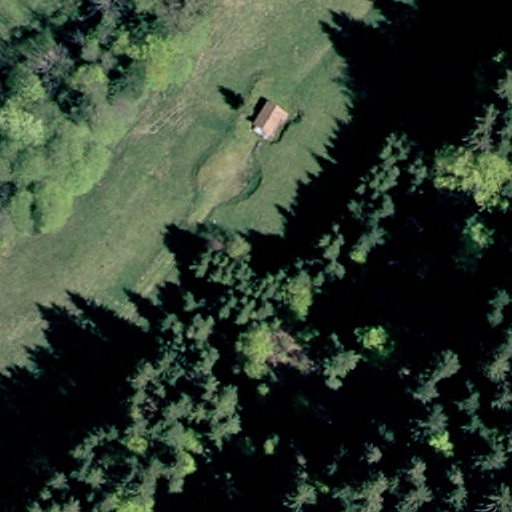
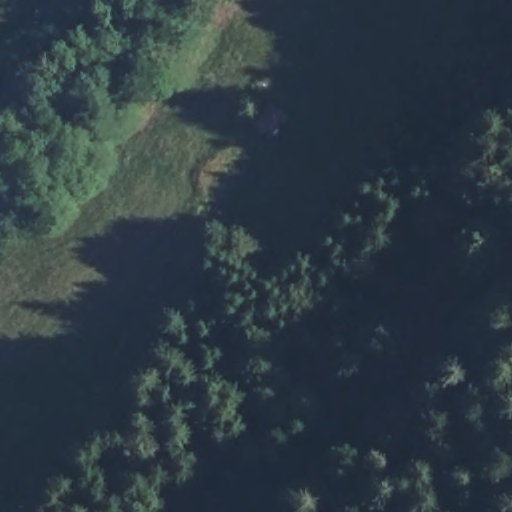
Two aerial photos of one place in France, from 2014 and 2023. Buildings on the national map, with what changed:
unchanged [(260,107),(262,105),(275,112),(262,133),(250,126),(260,107)]

